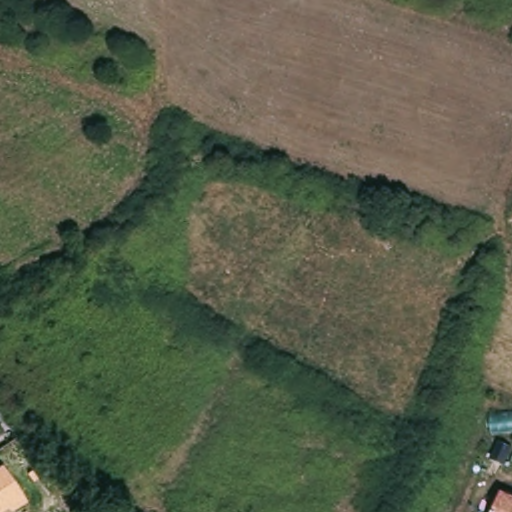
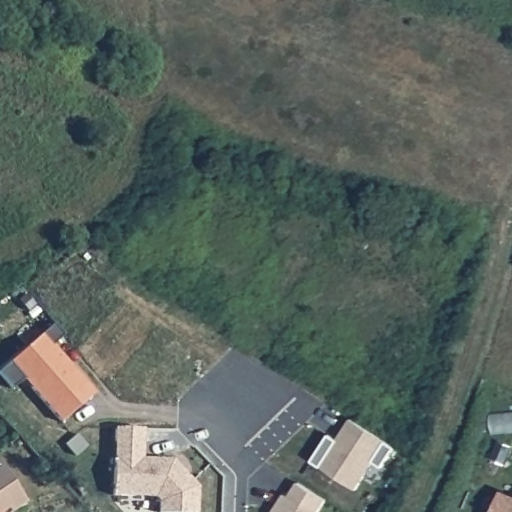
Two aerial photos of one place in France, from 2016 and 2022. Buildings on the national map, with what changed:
new [(11,386),(0,372),(0,370),(52,323),(63,334),(51,345),(94,392),(60,420),(23,376),(11,386)]
new [(330,437),(338,443),(352,422),(396,451),(382,471),(374,465),(356,492),(312,464),(330,437)]
new [(117,447),(117,432),(145,433),(144,447),(144,463),(174,462),(199,491),(198,512),(160,512),(161,506),(157,501),(115,500),(116,463),(117,447)]
unchanged [(27,502),(11,511),(8,507),(1,512),(0,512),(0,467),(4,465),(27,502)]
new [(276,510),(285,497),(289,500),(298,486),(326,502),(318,510),(321,511),(321,512),(279,512),(276,510)]
unchanged [(501,493),(512,498),(512,512),(492,512),(501,493)]

